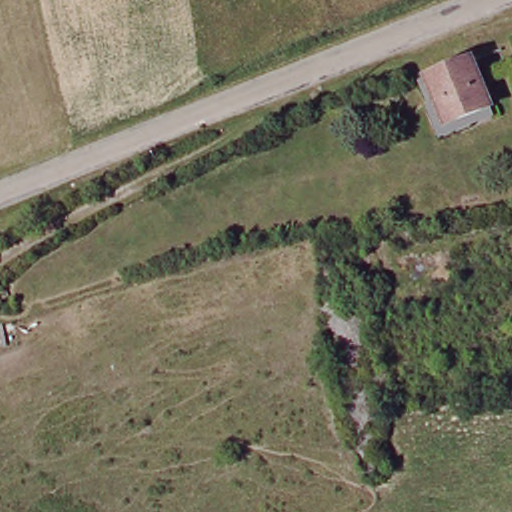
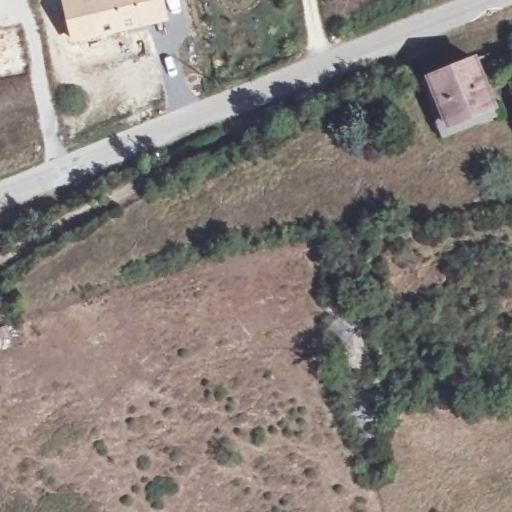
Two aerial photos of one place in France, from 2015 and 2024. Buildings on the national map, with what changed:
new [(169,20),(70,43),(60,0),(164,0),(169,20)]
unchanged [(450,131),(445,118),(427,74),(474,54),(492,98),(490,99),(496,113),(450,131)]

